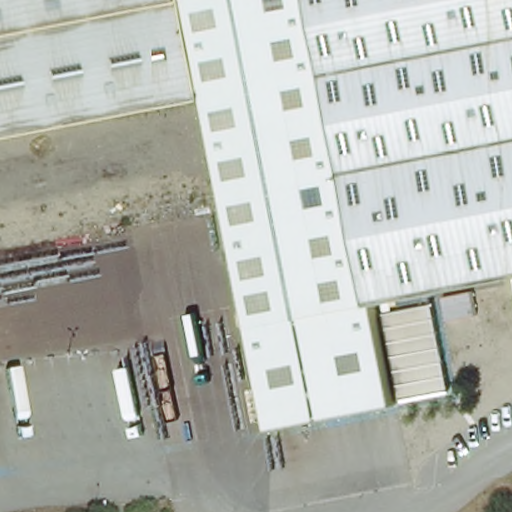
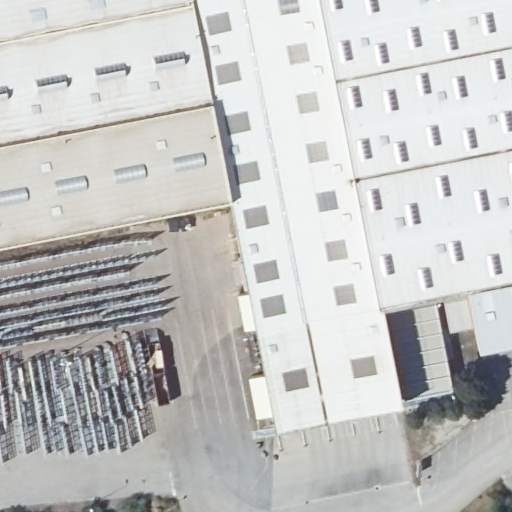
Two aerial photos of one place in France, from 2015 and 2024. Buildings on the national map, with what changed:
unchanged [(158,0),(0,32),(0,0),(158,0)]
unchanged [(194,0),(212,93),(0,133),(0,32),(158,0),(194,0)]
unchanged [(399,399),(277,423),(231,189),(212,93),(194,0),(512,0),(512,274),(380,298),(399,399)]
new [(231,189),(0,232),(0,133),(212,93),(231,189)]
unchanged [(435,299),(451,386),(403,396),(387,309),(435,299)]

